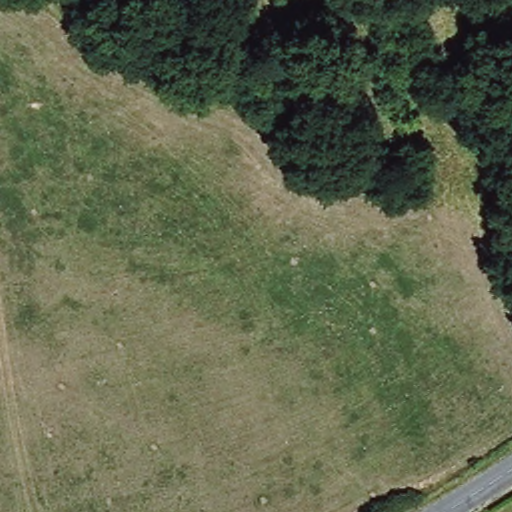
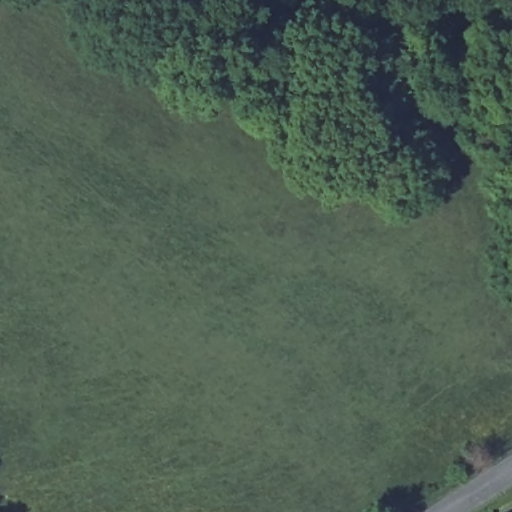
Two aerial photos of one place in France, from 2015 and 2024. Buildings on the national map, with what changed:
[]

